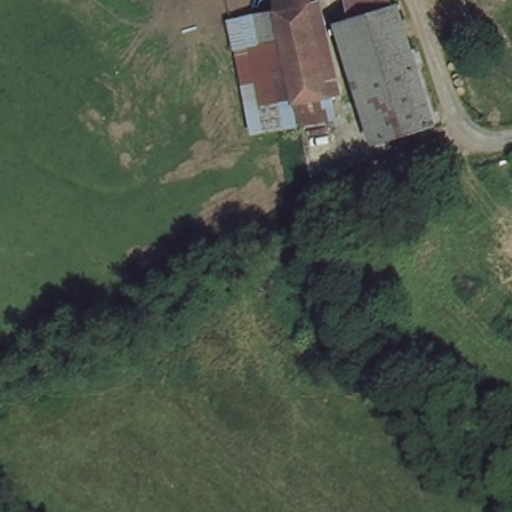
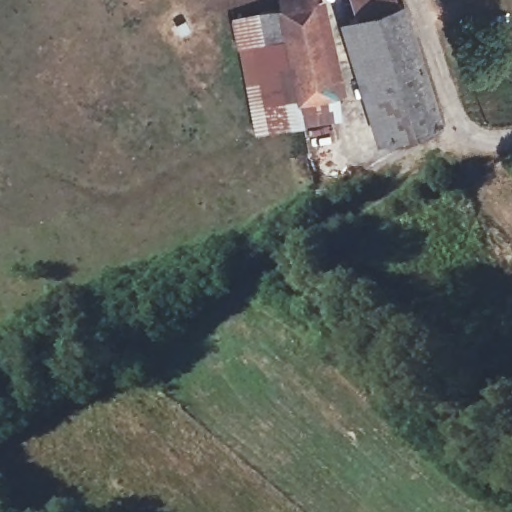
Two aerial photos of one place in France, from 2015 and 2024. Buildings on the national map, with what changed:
unchanged [(272,5),(271,0),(307,0),(329,111),(295,119),(279,35),(258,39),(252,9),(272,5)]
unchanged [(380,141),(344,23),(357,19),(352,0),(385,0),(388,8),(393,6),(430,124),(380,141)]
unchanged [(279,35),(295,119),(252,128),(235,44),(258,39),(279,35)]

